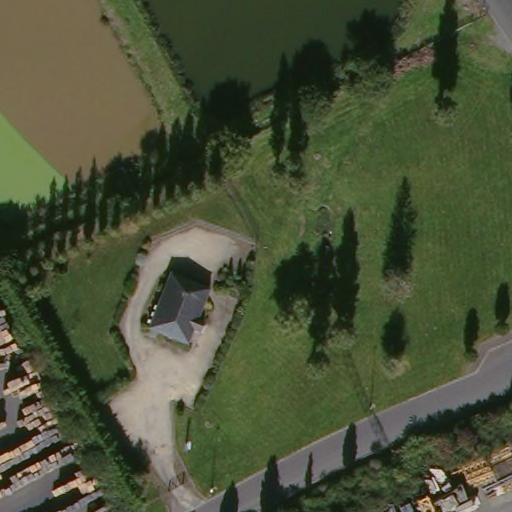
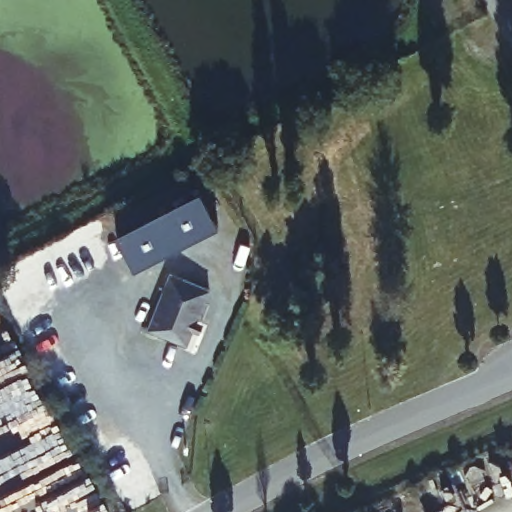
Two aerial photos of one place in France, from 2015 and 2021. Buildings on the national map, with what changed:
new [(117,235),(201,192),(217,226),(134,269),(117,235)]
unchanged [(194,343),(154,327),(176,271),(216,288),(194,343)]

